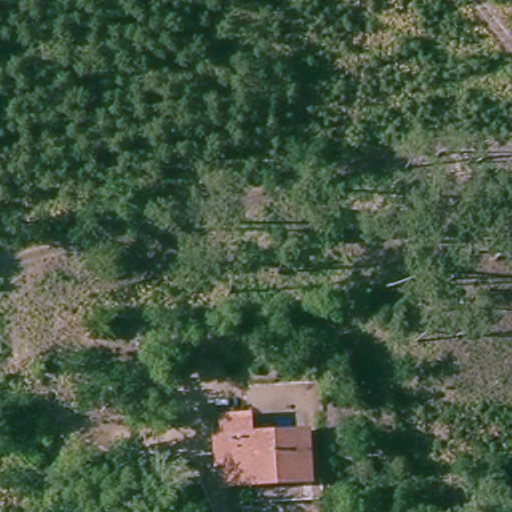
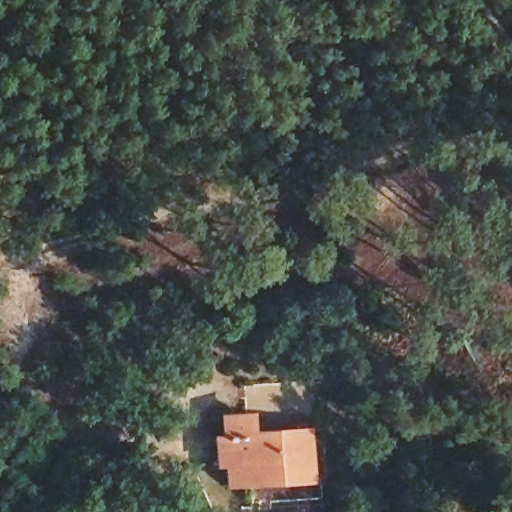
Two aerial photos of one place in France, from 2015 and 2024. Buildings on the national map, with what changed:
unchanged [(231,479),(229,457),(215,456),(214,430),(226,426),(225,410),(252,407),(254,428),(303,425),(305,470),(231,479)]

